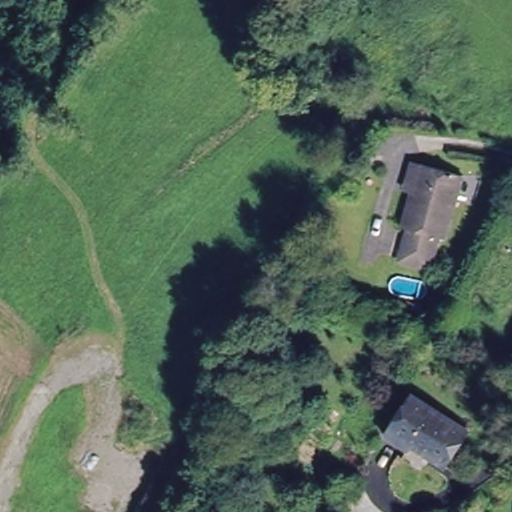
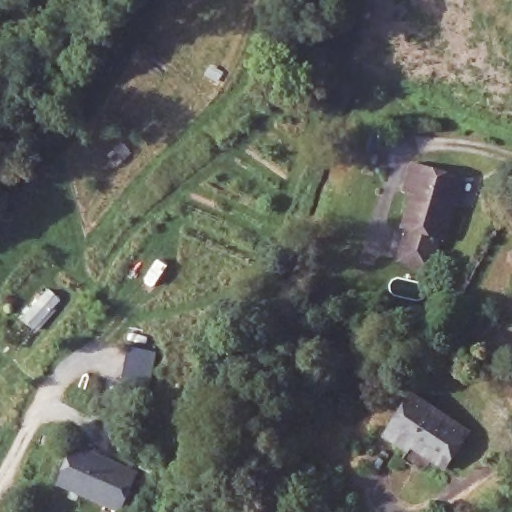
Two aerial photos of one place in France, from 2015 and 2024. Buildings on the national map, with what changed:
unchanged [(435,245),(427,243),(422,266),(396,259),(401,238),(396,233),(409,192),(398,189),(405,162),(415,166),(453,176),(435,245)]
new [(129,349),(153,354),(146,388),(121,383),(129,349)]
unchanged [(446,469),(387,437),(410,397),(467,429),(446,469)]
new [(73,448),(132,473),(116,509),(57,484),(73,448)]

